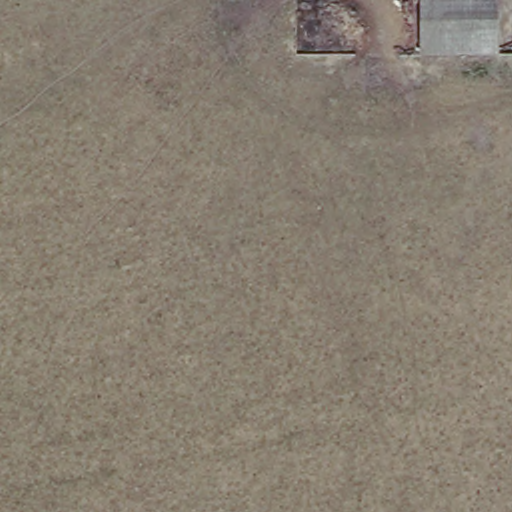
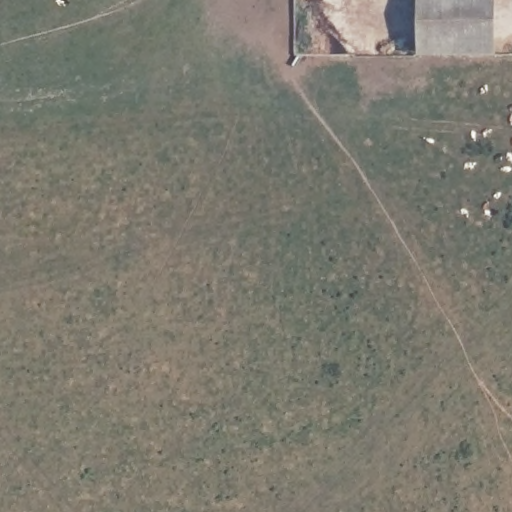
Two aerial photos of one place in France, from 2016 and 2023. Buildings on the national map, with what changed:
unchanged [(419,57),(421,0),(458,0),(495,1),(493,59),(419,57)]

